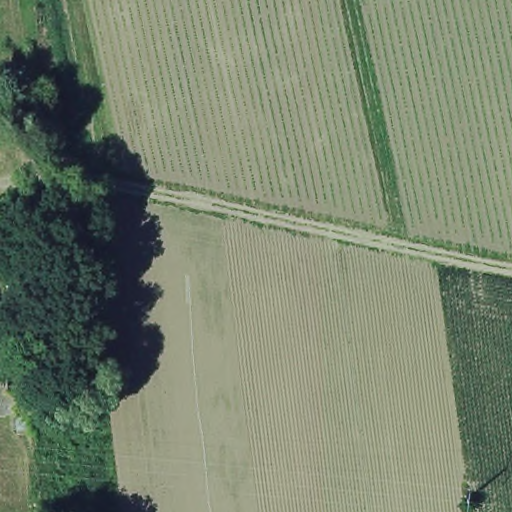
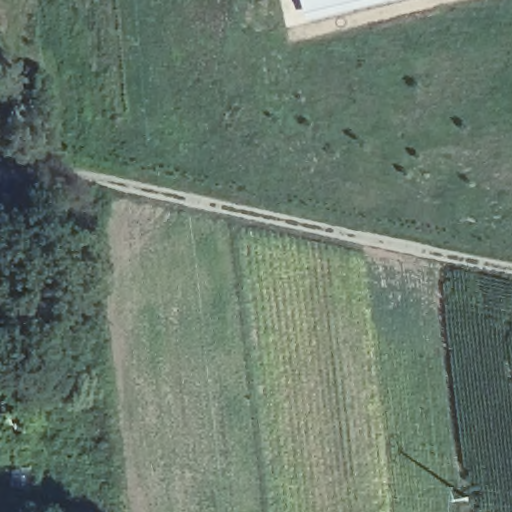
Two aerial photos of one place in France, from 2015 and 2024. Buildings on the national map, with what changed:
new [(310,19),(306,0),(396,0),(310,19)]
unchanged [(0,377),(20,377),(24,415),(0,418),(0,377)]

